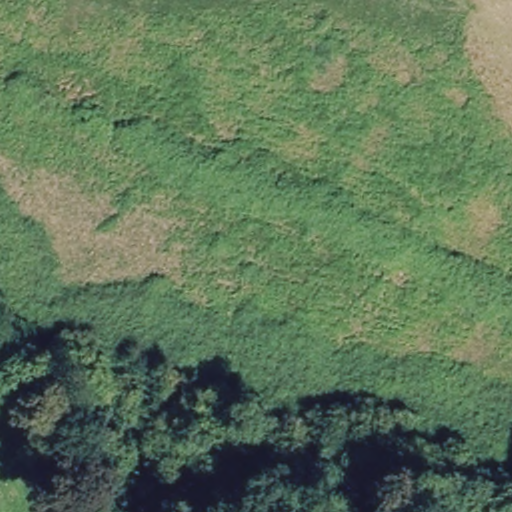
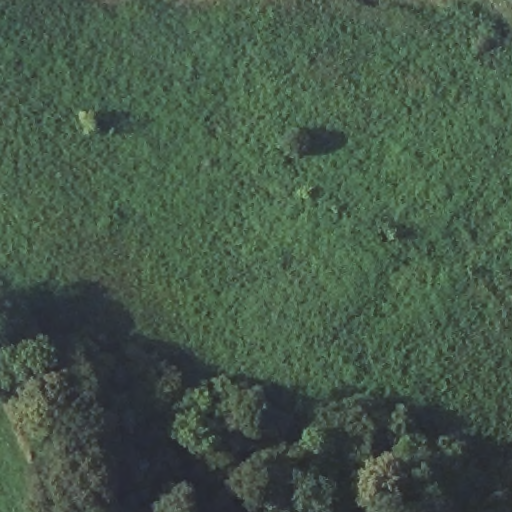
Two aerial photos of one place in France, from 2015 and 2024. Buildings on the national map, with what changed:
[]

